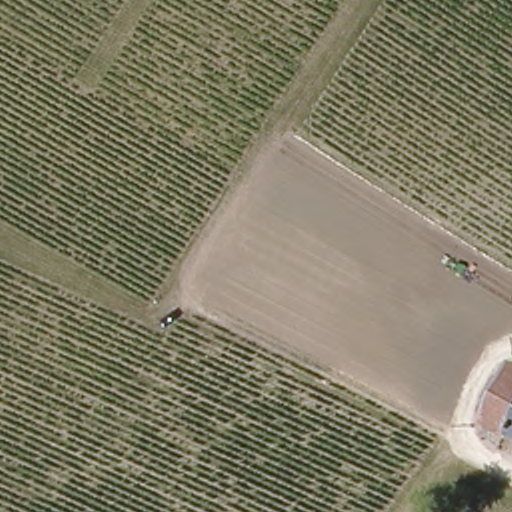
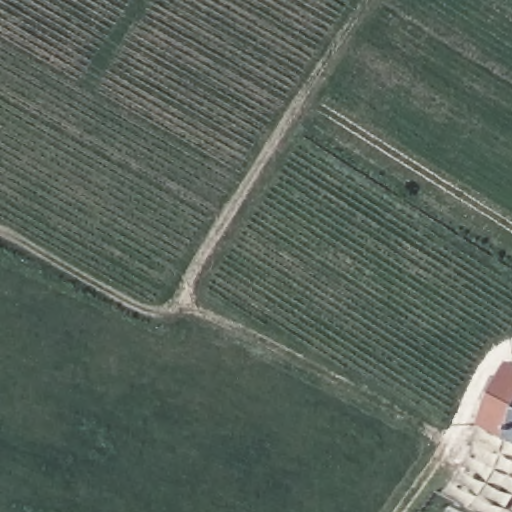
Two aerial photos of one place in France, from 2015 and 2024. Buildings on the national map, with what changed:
unchanged [(495,406),(489,402),(502,377),(508,381),(512,372),(512,439),(485,426),(495,406)]

